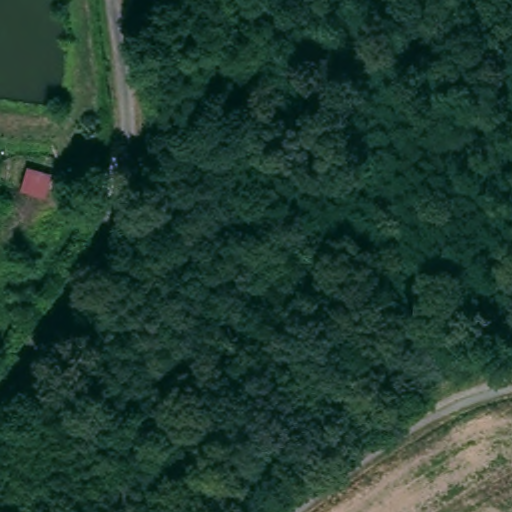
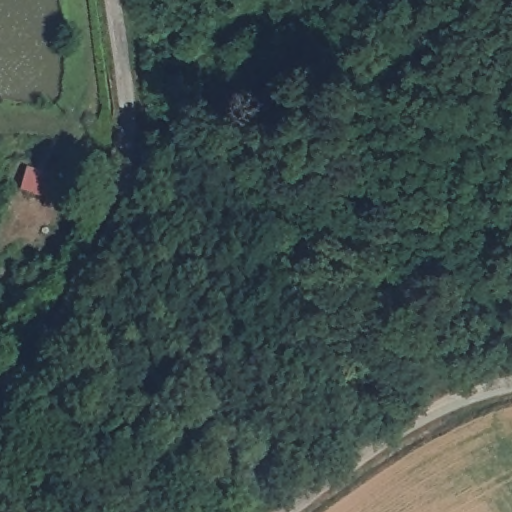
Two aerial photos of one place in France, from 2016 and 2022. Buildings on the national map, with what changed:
unchanged [(21,163),(49,170),(42,199),(15,190),(21,163)]

